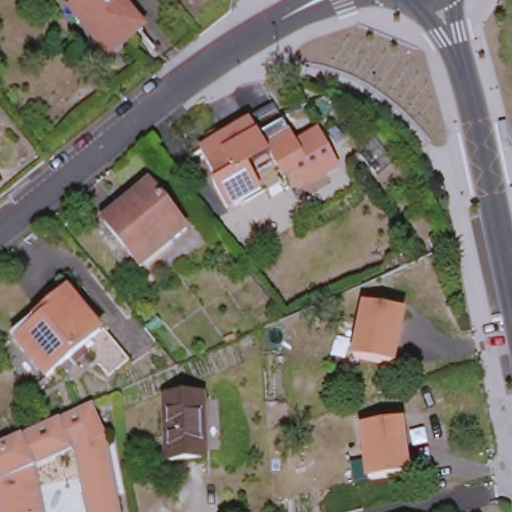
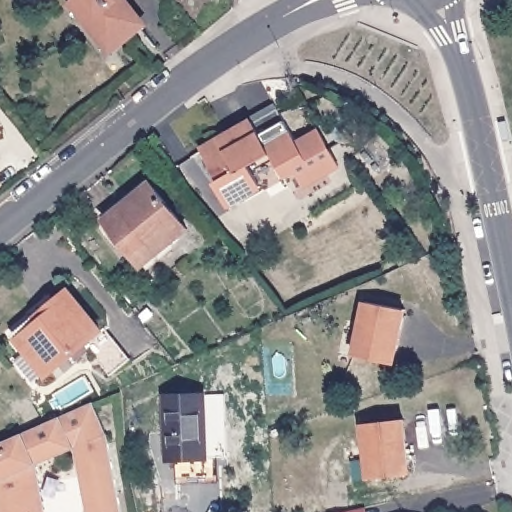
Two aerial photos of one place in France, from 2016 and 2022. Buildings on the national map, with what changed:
unchanged [(82,7),(79,4),(76,6),(72,0),(118,0),(122,5),(119,8),(132,24),(122,31),(132,43),(130,44),(132,48),(127,52),(124,49),(121,51),(119,48),(108,56),(75,13),(82,7)]
unchanged [(499,31),(495,31),(487,30),(489,17),(491,17),(500,18),(499,31)]
unchanged [(280,170),(271,154),(250,166),(261,187),(227,206),(215,184),(219,182),(202,151),(253,122),(265,143),(290,129),(297,143),(320,131),(339,166),(304,186),(298,175),(286,182),(280,170)]
unchanged [(188,230),(142,267),(105,221),(151,183),(188,230)]
unchanged [(97,332),(100,329),(126,360),(105,377),(80,346),(42,376),(10,336),(65,292),(97,332)]
unchanged [(395,365),(356,357),(366,303),(406,311),(395,365)]
unchanged [(207,459),(169,461),(167,461),(165,398),(204,396),(207,459)]
unchanged [(33,490),(26,491),(30,512),(0,512),(0,444),(93,403),(107,435),(122,510),(112,512),(95,512),(81,438),(27,461),(33,490)]
unchanged [(410,476),(370,480),(364,425),(367,425),(404,421),(410,476)]
unchanged [(37,466),(46,512),(30,512),(26,491),(33,490),(27,461),(81,438),(95,512),(87,512),(75,450),(37,466)]
unchanged [(112,512),(122,510),(122,512),(112,512)]

